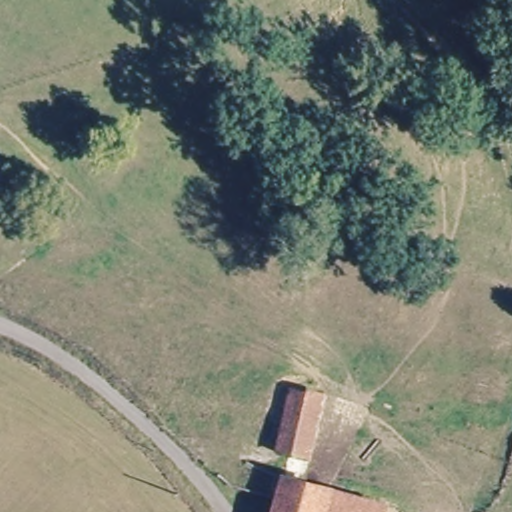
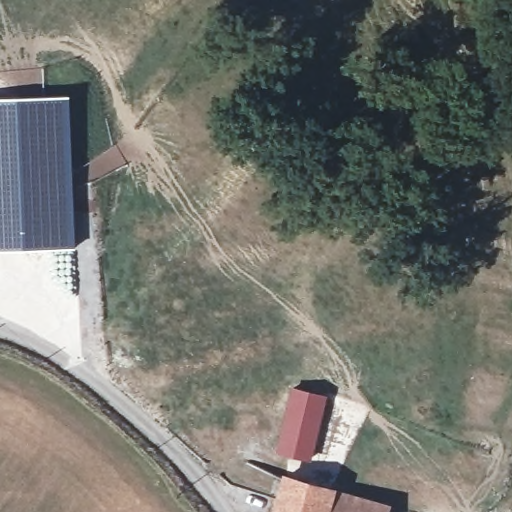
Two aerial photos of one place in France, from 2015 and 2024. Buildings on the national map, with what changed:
new [(70,94),(75,247),(26,250),(0,251),(0,97),(70,94)]
unchanged [(292,395),(323,400),(311,449),(308,458),(279,454),(286,421),(292,395)]
unchanged [(385,500),(382,512),(273,512),(281,475),(385,500)]

